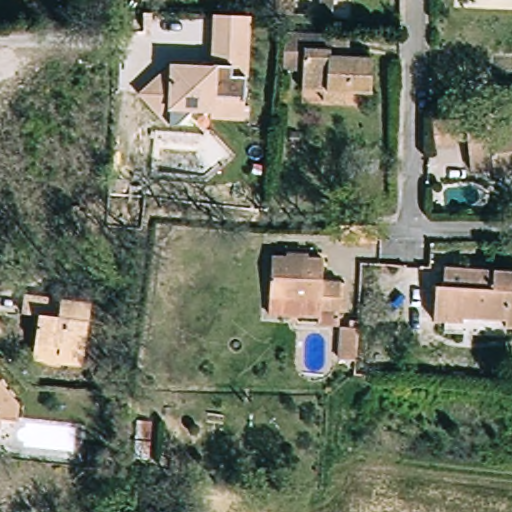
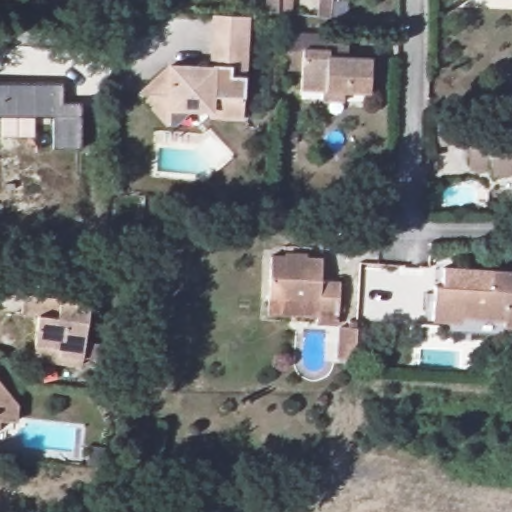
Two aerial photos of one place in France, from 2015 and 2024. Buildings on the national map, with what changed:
unchanged [(276,11),(277,0),(291,0),(290,12),(276,11)]
unchanged [(241,78),(226,77),(226,96),(240,96),(239,119),(205,119),(205,111),(189,110),(170,126),(162,125),(135,95),(167,65),(208,68),(211,14),(244,16),(241,78)]
unchanged [(325,99),(325,91),(302,89),(303,70),(286,69),(290,31),(320,34),(351,35),(350,56),(374,57),(372,93),(345,91),(344,100),(325,99)]
new [(64,81),(63,101),(82,102),(80,149),(52,147),(53,115),(0,112),(0,79),(64,81)]
unchanged [(512,124),(512,168),(491,170),(490,162),(471,164),(468,134),(453,134),(438,136),(437,116),(452,115),(467,114),(468,128),(512,124)]
unchanged [(381,223),(380,242),(344,241),(344,223),(381,223)]
unchanged [(310,309),(310,302),(259,300),(261,242),(313,243),(312,265),(331,267),(330,298),(330,310),(310,309)]
unchanged [(497,319),(460,317),(458,324),(428,323),(431,287),(441,287),(441,269),(512,271),(512,293),(500,293),(497,319)]
unchanged [(504,319),(497,319),(500,293),(512,293),(512,328),(504,328),(504,319)]
unchanged [(32,359),(33,343),(35,313),(20,310),(22,294),(87,299),(80,356),(80,363),(32,359)]
unchanged [(349,349),(344,348),(330,348),(332,313),(350,312),(349,339),(349,349)]
unchanged [(24,407),(22,423),(6,422),(0,413),(0,370),(24,407)]
unchanged [(0,432),(0,421),(6,422),(5,427),(0,432)]

